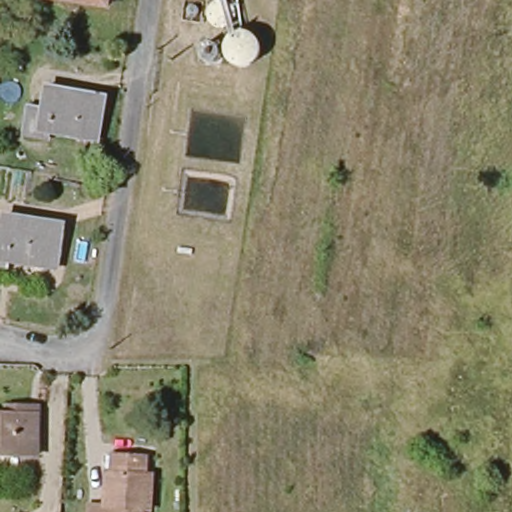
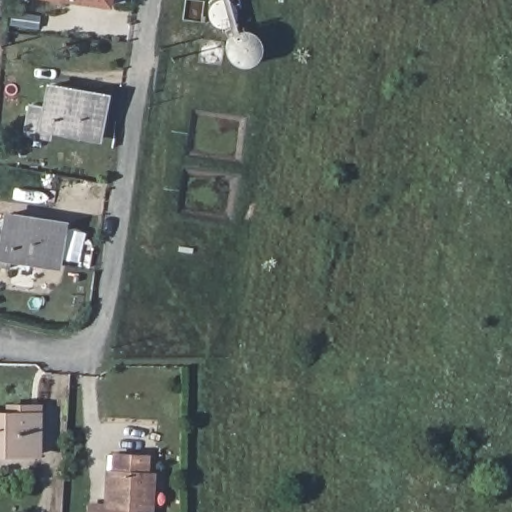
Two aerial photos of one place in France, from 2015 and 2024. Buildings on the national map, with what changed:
unchanged [(105,5),(73,0),(105,0),(105,5)]
unchanged [(24,135),(30,106),(45,109),(49,93),(50,86),(79,91),(108,96),(100,139),(54,131),(51,140),(44,139),(24,135)]
unchanged [(0,236),(0,232),(2,225),(30,229),(60,234),(53,277),(6,270),(5,278),(0,278),(0,269),(0,236)]
unchanged [(0,413),(9,413),(10,406),(30,407),(30,414),(40,415),(38,455),(0,453),(0,413)]
unchanged [(151,461),(158,461),(156,492),(150,492),(149,512),(112,512),(95,512),(96,491),(112,491),(114,457),(120,457),(121,440),(152,441),(151,461)]

